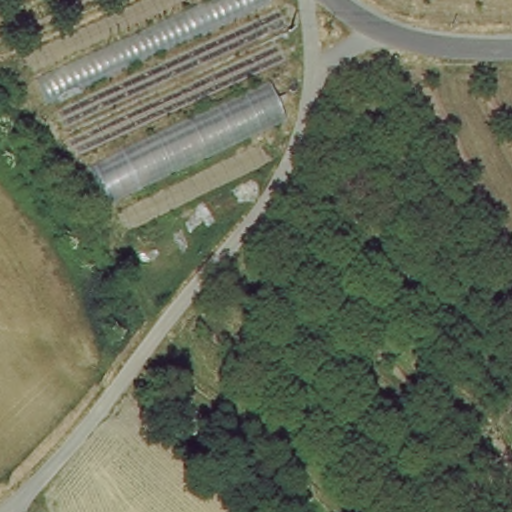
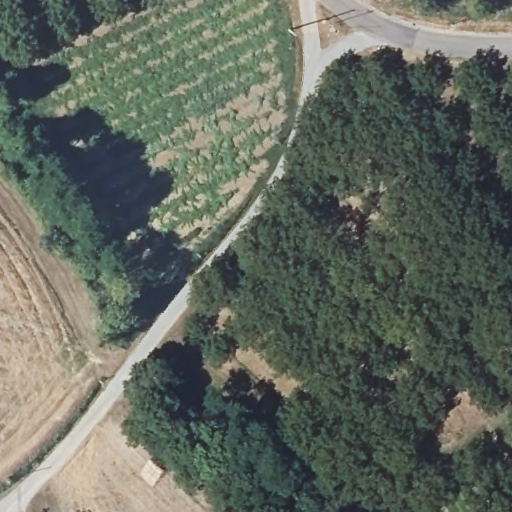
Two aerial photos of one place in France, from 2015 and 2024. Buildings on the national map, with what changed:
demolished [(270,9),(276,5),(288,32),(277,37),(289,68),(280,72),(293,116),(258,135),(269,173),(128,238),(117,210),(106,216),(53,107),(45,111),(30,87),(36,82),(25,58),(158,0),(266,0),(270,9)]

